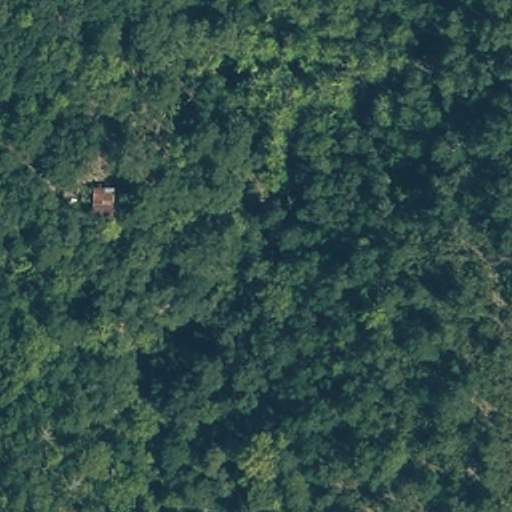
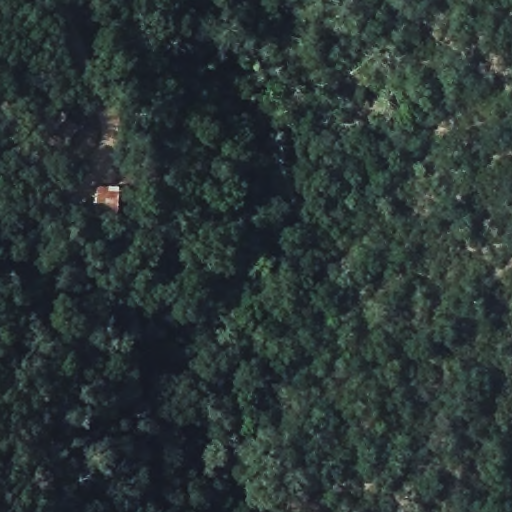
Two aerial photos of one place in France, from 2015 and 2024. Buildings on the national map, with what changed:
unchanged [(120,221),(95,222),(96,188),(120,189),(120,221)]

